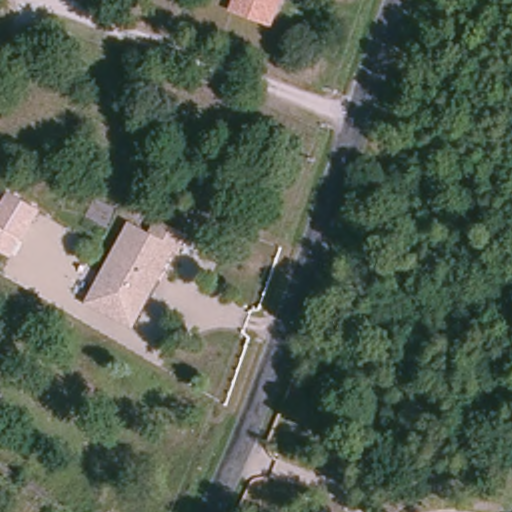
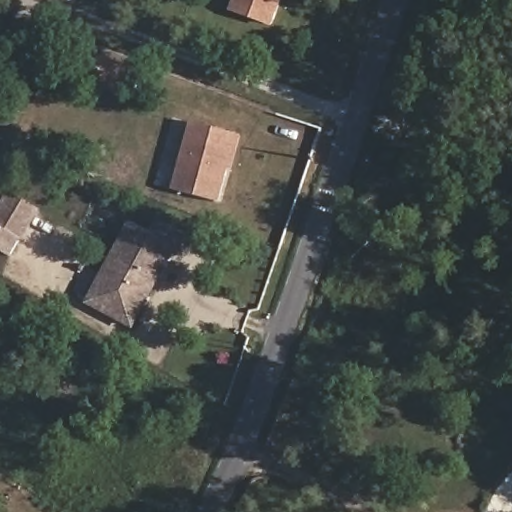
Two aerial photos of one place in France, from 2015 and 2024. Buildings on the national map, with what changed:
unchanged [(232,8),(235,0),(278,0),(270,22),(232,8)]
new [(190,121),(241,135),(222,202),(172,188),(190,121)]
unchanged [(21,238),(11,257),(0,251),(0,208),(10,191),(42,210),(25,240),(21,238)]
unchanged [(152,233),(160,217),(192,234),(180,255),(173,252),(132,331),(85,302),(130,220),(152,233)]

